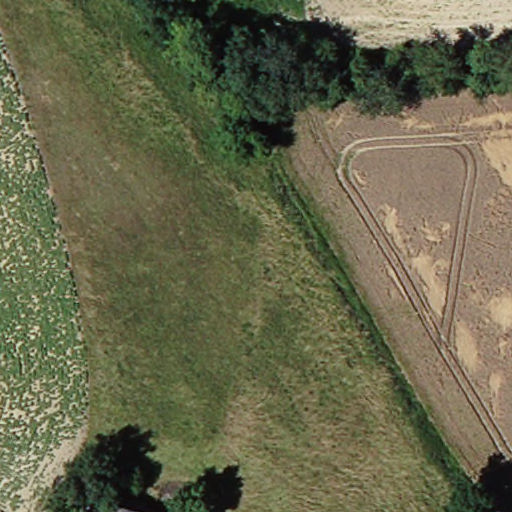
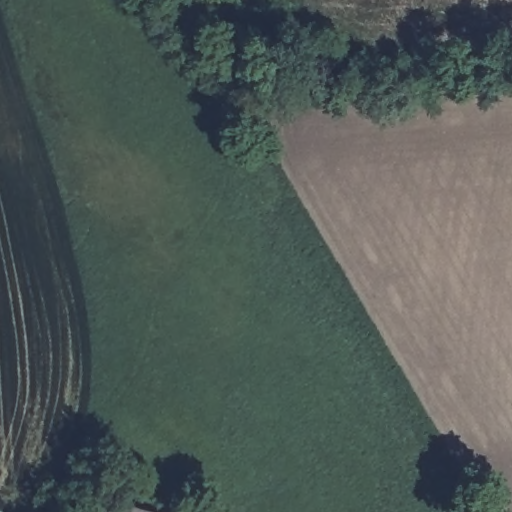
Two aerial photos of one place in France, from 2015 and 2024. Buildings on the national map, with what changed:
unchanged [(92,512),(96,495),(164,512),(92,512)]

